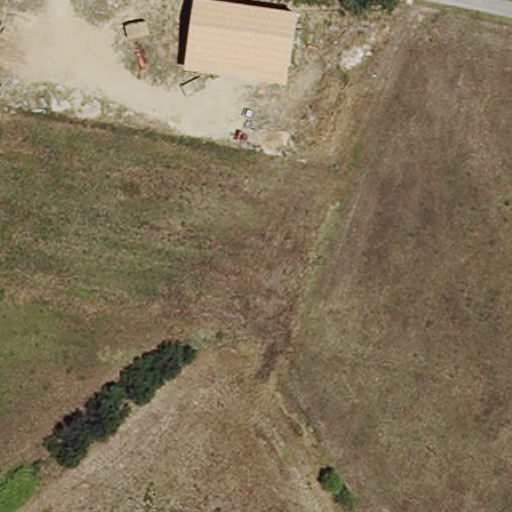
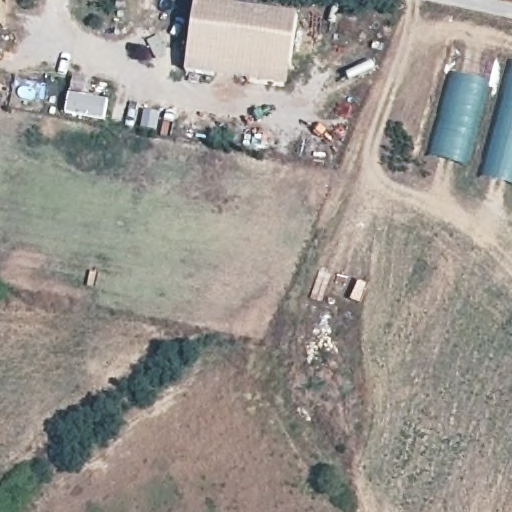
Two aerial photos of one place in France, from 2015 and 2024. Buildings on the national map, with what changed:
unchanged [(195,4),(298,19),(289,87),(186,71),(195,4)]
new [(507,60),(512,61),(512,186),(475,176),(507,60)]
new [(462,165),(425,155),(448,71),(485,82),(462,165)]

